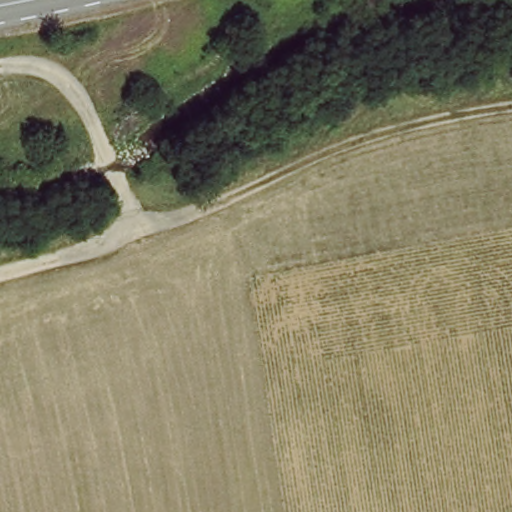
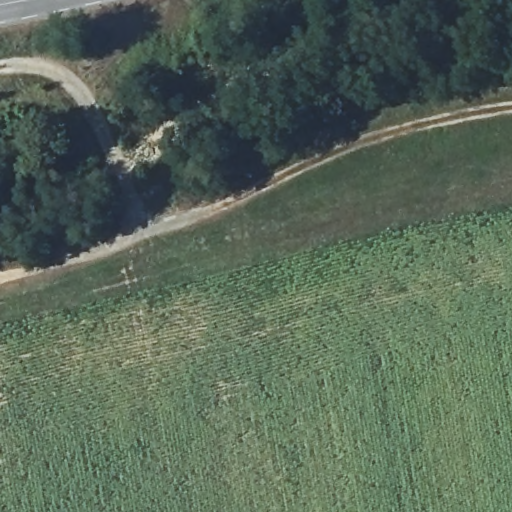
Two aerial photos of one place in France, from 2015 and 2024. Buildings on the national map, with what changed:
[]

